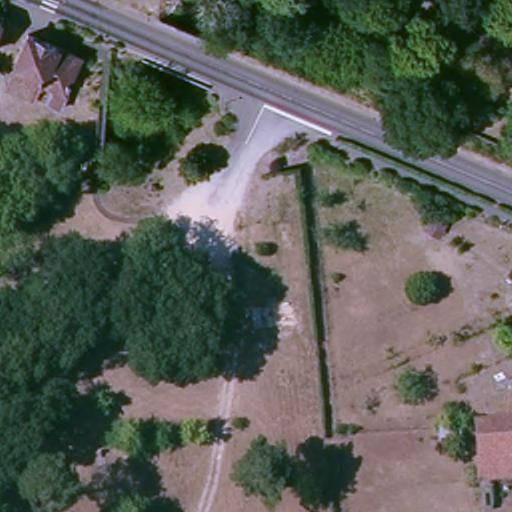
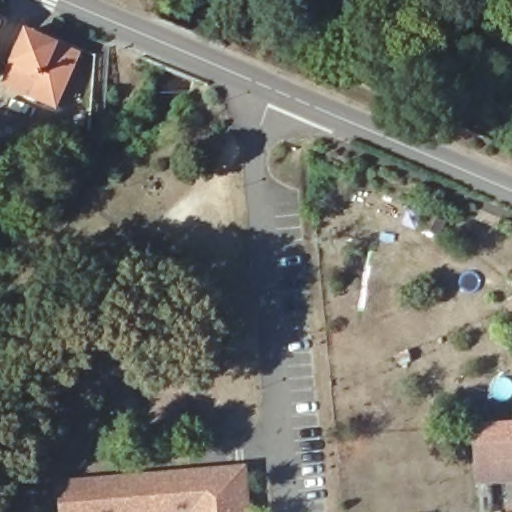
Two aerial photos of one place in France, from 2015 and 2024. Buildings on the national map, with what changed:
unchanged [(0,21),(0,14),(2,15),(0,21)]
unchanged [(0,81),(23,32),(79,56),(64,86),(67,88),(59,107),(44,101),(30,95),(0,81)]
unchanged [(512,297),(512,305),(508,298),(512,297)]
demolished [(305,306),(306,328),(275,331),(273,310),(305,306)]
unchanged [(512,477),(476,480),(471,425),(512,421),(512,477)]
new [(247,465),(252,512),(62,512),(59,482),(247,465)]

